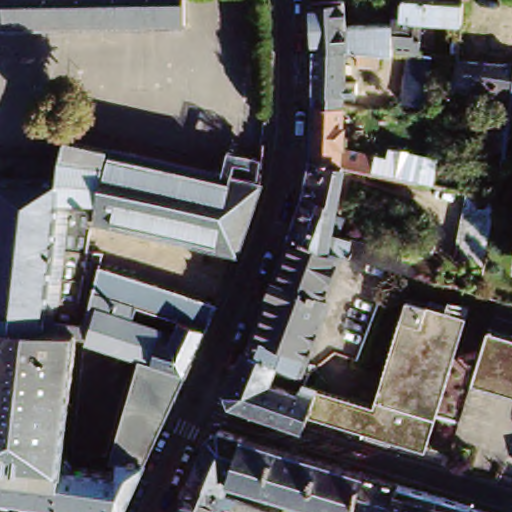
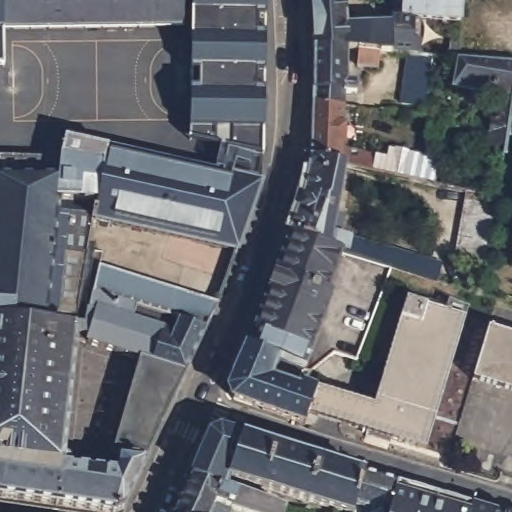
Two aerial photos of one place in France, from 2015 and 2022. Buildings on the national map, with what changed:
unchanged [(2,0),(3,17),(0,45),(0,0),(2,0)]
unchanged [(3,28),(2,0),(184,0),(184,24),(3,28)]
new [(270,119),(265,119),(262,155),(193,139),(191,0),(267,0),(269,56),(270,119)]
unchanged [(418,56),(405,55),(404,55),(400,54),(390,54),(390,52),(388,24),(388,16),(387,0),(438,0),(458,1),(460,1),(459,21),(420,19),(418,56)]
unchanged [(355,68),(357,51),(340,50),(318,48),(312,48),(309,4),(342,1),(343,27),(388,24),(390,52),(390,54),(377,53),(376,69),(355,68)]
unchanged [(353,93),(339,92),(339,104),(311,100),(312,48),(318,48),(340,50),(340,83),(352,82),(353,93)]
unchanged [(477,55),(495,56),(512,58),(512,67),(510,75),(508,91),(451,81),(456,53),(457,53),(463,54),(477,55)]
unchanged [(399,104),(405,55),(418,56),(428,56),(422,107),(399,104)]
unchanged [(410,179),(396,176),(342,164),(310,158),(311,100),(339,104),(338,148),(384,158),(386,149),(401,152),(401,154),(415,157),(410,179)]
unchanged [(451,190),(452,185),(466,188),(466,187),(490,192),(502,115),(512,117),(512,143),(504,193),(503,196),(502,206),(495,205),(473,200),(460,197),(442,194),(435,192),(436,186),(443,188),(451,190)]
unchanged [(65,153),(66,140),(260,181),(236,250),(125,225),(95,219),(88,264),(220,293),(122,508),(115,512),(0,496),(0,152),(65,153)]
unchanged [(305,189),(310,158),(342,164),(333,214),(343,217),(337,232),(439,262),(435,279),(421,275),(414,272),(388,265),(355,255),(347,252),(340,250),(289,232),(305,189)]
unchanged [(462,267),(473,200),(495,205),(502,206),(494,259),(492,272),(462,267)]
unchanged [(269,285),(289,232),(340,250),(318,309),(323,311),(302,368),(280,359),(245,346),(269,285)]
unchanged [(315,387),(372,405),(405,298),(464,316),(422,451),(304,414),(315,387)]
unchanged [(512,358),(510,357),(505,372),(512,374),(512,398),(471,386),(473,378),(487,333),(512,340),(512,358)]
unchanged [(280,359),(270,382),(299,392),(302,382),(315,387),(304,414),(301,423),(231,397),(229,389),(245,346),(280,359)]
unchanged [(510,357),(512,358),(512,374),(505,372),(510,357)]
unchanged [(210,434),(219,428),(242,436),(225,476),(225,477),(221,487),(190,476),(210,434)]
unchanged [(247,483),(246,489),(237,486),(240,481),(225,477),(225,476),(242,436),(271,445),(257,487),(247,483)]
unchanged [(271,445),(317,459),(303,501),(257,487),(271,445)]
unchanged [(335,511),(303,501),(317,459),(361,473),(351,512),(335,512),(335,511)]
unchanged [(361,473),(393,483),(386,512),(351,512),(361,473)]
unchanged [(190,476),(221,487),(253,498),(282,508),(281,512),(244,512),(230,507),(228,512),(175,512),(190,476)]
unchanged [(393,483),(467,505),(465,512),(386,512),(393,483)]
unchanged [(478,508),(491,512),(465,512),(467,505),(478,508)]
unchanged [(307,512),(294,512),(296,506),(301,508),(307,510),(307,512)]

